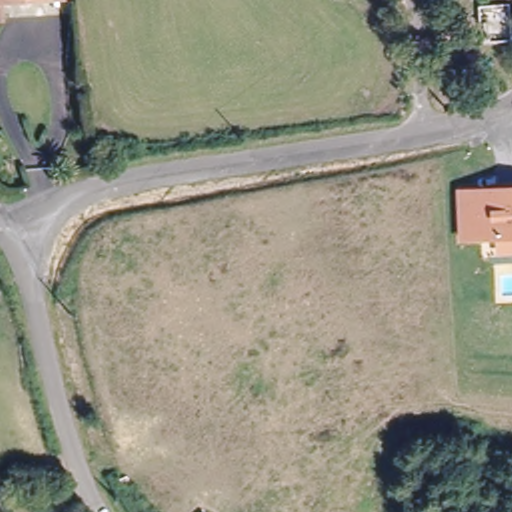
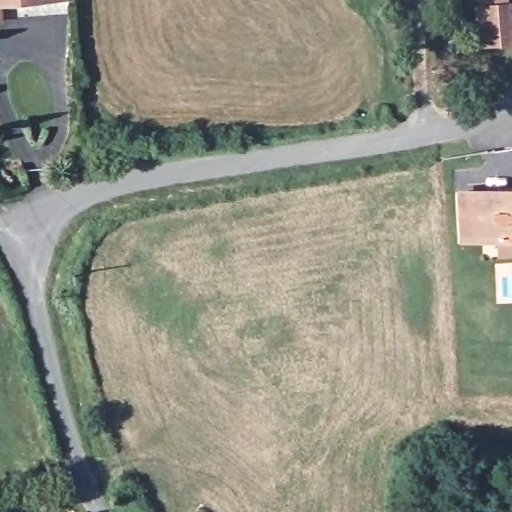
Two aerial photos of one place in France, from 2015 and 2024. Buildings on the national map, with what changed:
unchanged [(0,20),(0,0),(3,0),(5,20),(0,20)]
unchanged [(512,46),(476,47),(475,4),(512,1),(512,46)]
unchanged [(501,225),(470,225),(469,180),(512,178),(512,240),(502,240),(501,225)]

